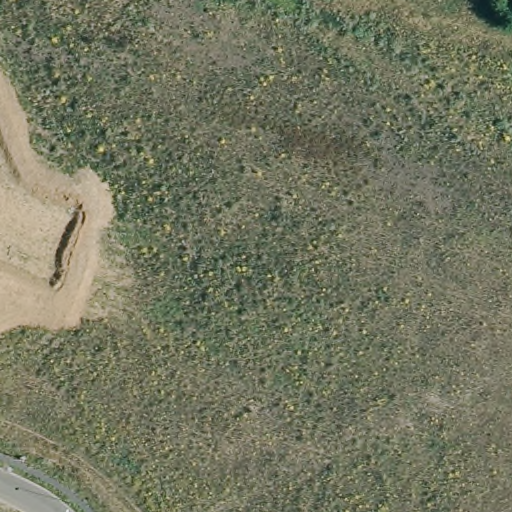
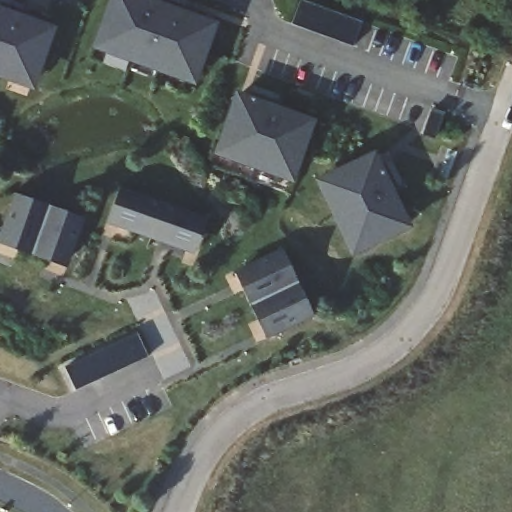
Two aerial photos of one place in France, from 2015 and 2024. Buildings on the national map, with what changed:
new [(182,77),(104,49),(93,45),(100,28),(101,29),(111,0),(164,0),(197,12),(195,19),(211,25),(197,63),(200,64),(193,80),(182,77)]
new [(292,25),(301,1),(362,23),(353,46),(292,25)]
new [(39,71),(34,86),(0,75),(0,16),(12,20),(13,16),(50,29),(35,70),(39,71)]
new [(292,179),(280,174),(225,155),(214,150),(220,134),(223,134),(237,96),(251,101),(254,94),(297,109),(295,116),(309,122),(295,160),(298,161),(292,179)]
new [(352,254),(347,243),(322,190),(317,179),(334,170),(335,174),(372,156),(405,225),(368,243),(369,245),(352,254)]
new [(192,254),(185,251),(113,226),(105,223),(118,187),(126,189),(197,215),(205,218),(192,254)]
new [(12,193),(83,218),(69,259),(65,268),(0,245),(0,229),(12,193)]
new [(283,254),(312,316),(274,334),(265,339),(235,278),(245,274),(283,254)]
new [(136,334),(147,357),(74,391),(64,368),(136,334)]

